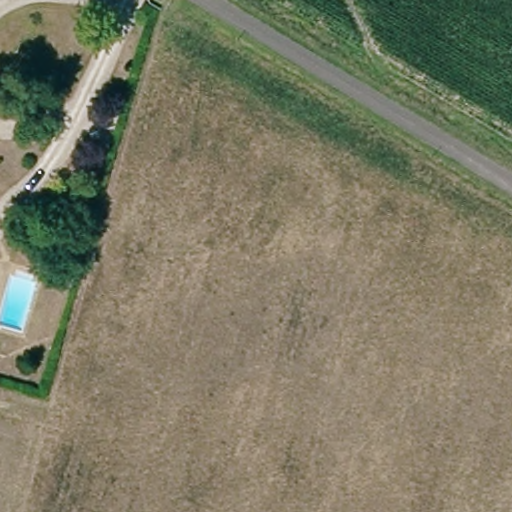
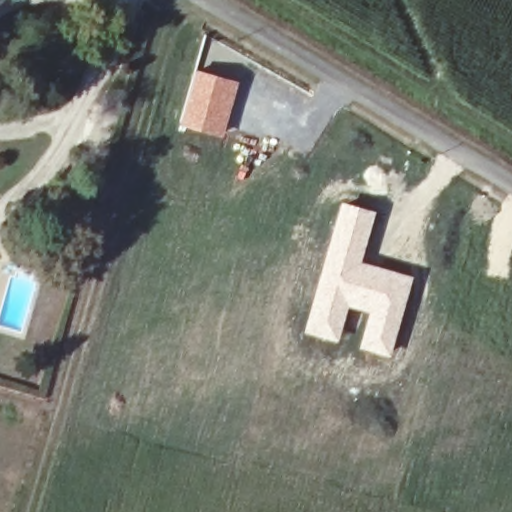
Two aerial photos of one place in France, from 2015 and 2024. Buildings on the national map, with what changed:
new [(195,68),(239,80),(222,137),(180,123),(195,68)]
new [(340,200),(376,210),(362,260),(414,275),(390,356),(358,347),(368,312),(349,307),(337,342),(303,330),(340,200)]

